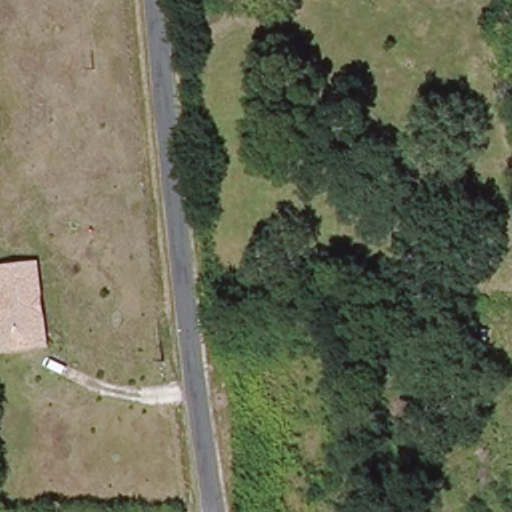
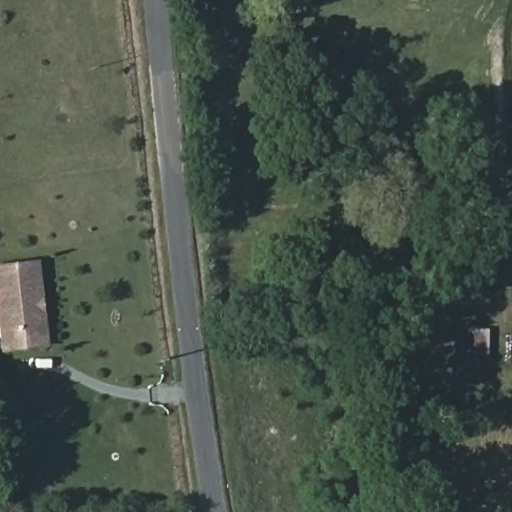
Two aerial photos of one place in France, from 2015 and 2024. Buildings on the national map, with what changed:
unchanged [(46,346),(1,352),(0,340),(0,263),(37,259),(46,346)]

